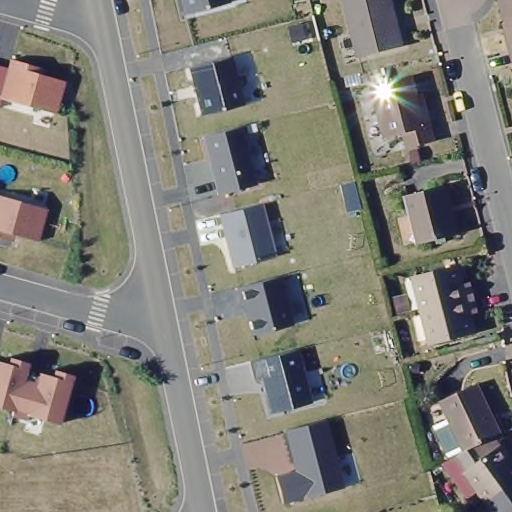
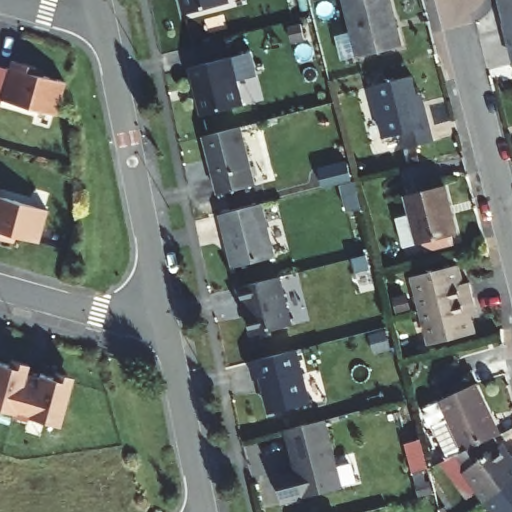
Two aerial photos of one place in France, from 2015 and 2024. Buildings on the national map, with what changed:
unchanged [(231,3),(184,14),(181,0),(230,0),(231,3)]
unchanged [(392,18),(396,17),(402,44),(358,55),(343,0),(389,0),(392,18)]
unchanged [(512,28),(505,0),(512,0),(512,28)]
unchanged [(232,57),(245,105),(201,115),(189,68),(232,57)]
unchanged [(8,68),(10,59),(41,69),(40,74),(65,81),(57,115),(0,100),(0,66),(8,68)]
unchanged [(420,115),(423,114),(430,143),(404,150),(401,135),(382,137),(370,88),(409,79),(420,115)]
unchanged [(243,127),(258,185),(216,196),(201,137),(243,127)]
unchanged [(460,235),(421,245),(408,199),(449,188),(460,235)]
unchanged [(47,209),(39,241),(15,235),(13,242),(0,239),(0,196),(47,209)]
unchanged [(262,204),(276,258),(233,269),(219,214),(262,204)]
unchanged [(430,310),(421,273),(457,265),(462,284),(469,282),(474,299),(430,310)]
unchanged [(280,277),(294,326),(250,337),(237,288),(280,277)]
unchanged [(478,313),(470,315),(475,333),(436,341),(430,310),(474,299),(478,313)]
unchanged [(254,379),(250,362),(298,349),(312,404),(270,414),(260,378),(254,379)]
unchanged [(6,363),(8,358),(29,364),(27,371),(38,375),(39,372),(51,376),(53,371),(75,377),(60,423),(28,415),(27,420),(12,416),(14,410),(0,406),(0,362),(6,363)]
unchanged [(512,484),(495,496),(491,490),(480,496),(457,458),(453,459),(438,428),(454,421),(445,403),(481,387),(505,434),(492,441),(499,451),(506,445),(512,452),(512,484)]
unchanged [(327,421),(345,489),(283,505),(275,476),(295,471),(285,432),(327,421)]
unchanged [(512,512),(509,512),(495,496),(512,484),(512,512)]

